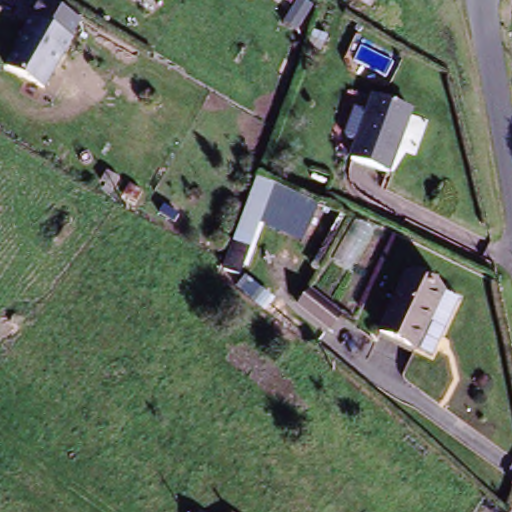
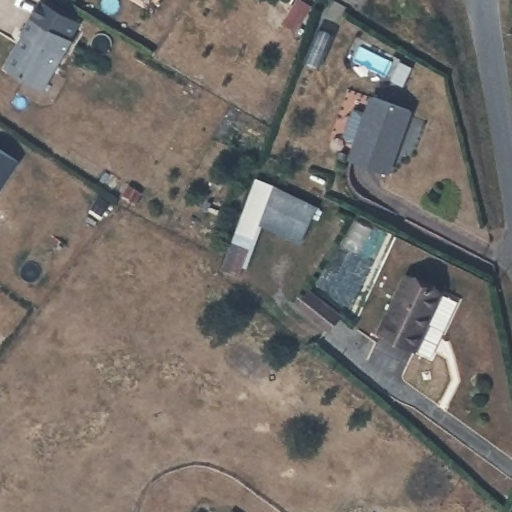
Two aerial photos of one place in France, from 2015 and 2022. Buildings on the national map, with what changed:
unchanged [(0,73),(21,40),(19,38),(28,23),(67,45),(38,94),(0,73)]
unchanged [(355,165),(377,101),(413,115),(390,179),(355,165)]
new [(0,186),(0,152),(16,162),(0,186)]
unchanged [(303,249),(256,231),(236,282),(219,274),(251,184),(316,210),(303,249)]
unchanged [(379,331),(408,274),(446,292),(460,299),(444,330),(432,357),(379,331)]
unchanged [(299,310),(313,296),(343,324),(331,338),(299,310)]

